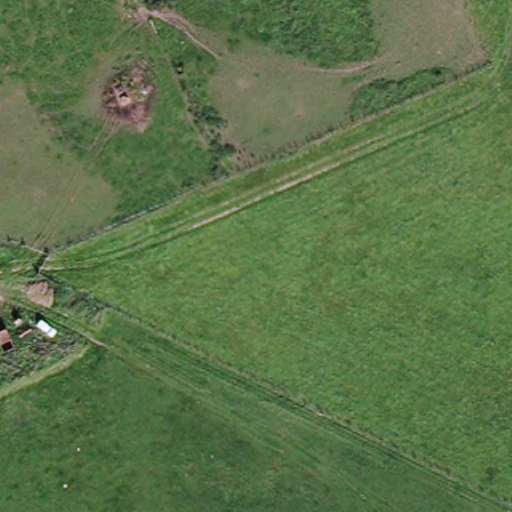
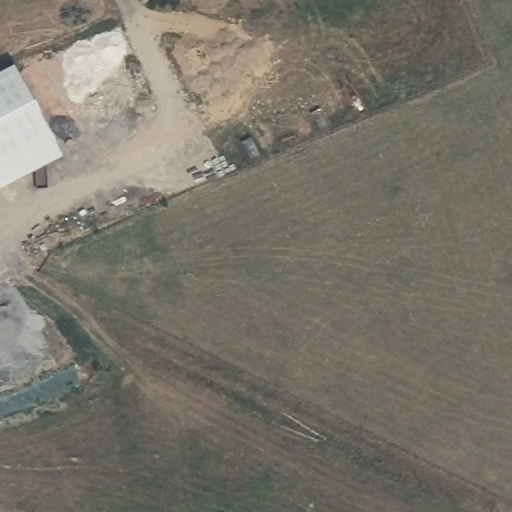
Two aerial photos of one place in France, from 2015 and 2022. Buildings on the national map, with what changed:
new [(12,68),(62,159),(0,193),(0,75),(12,68)]

